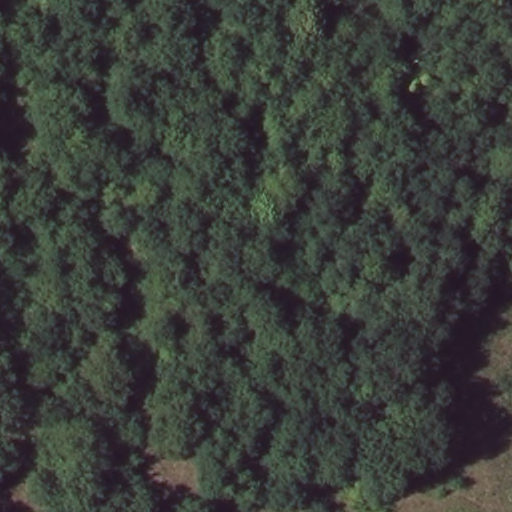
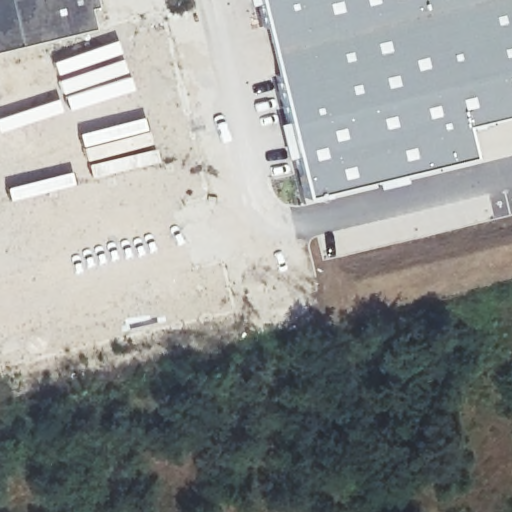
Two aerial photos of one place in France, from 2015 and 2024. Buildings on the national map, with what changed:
new [(88,8),(91,28),(0,49),(0,0),(92,0),(93,6),(88,8)]
new [(510,116),(467,128),(473,157),(303,198),(288,141),(264,34),(255,0),(512,0),(512,114),(510,116)]

